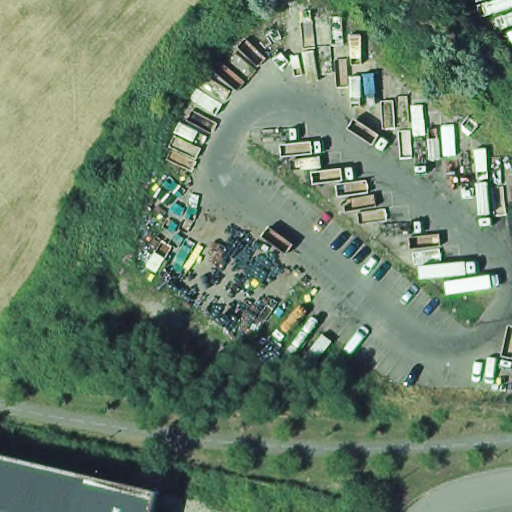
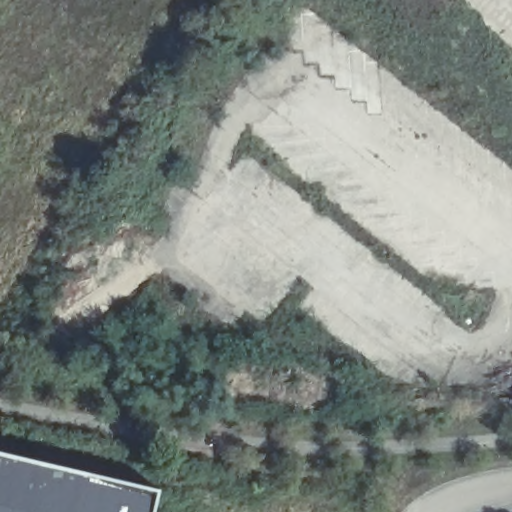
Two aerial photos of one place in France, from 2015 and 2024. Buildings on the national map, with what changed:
unchanged [(96,473),(90,498),(88,512),(0,512),(0,450),(96,473)]
unchanged [(158,488),(153,512),(150,512),(90,498),(96,473),(158,488)]
unchanged [(88,512),(90,498),(150,512),(88,512)]

